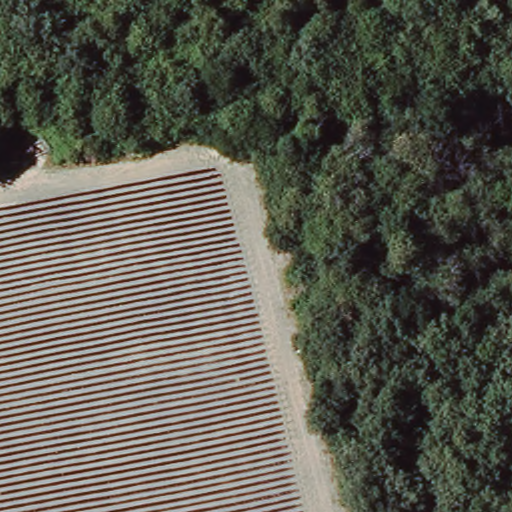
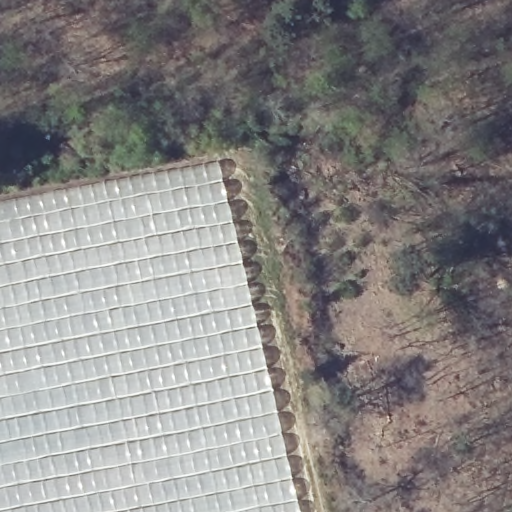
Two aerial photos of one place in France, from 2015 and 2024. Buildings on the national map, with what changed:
new [(65,188),(158,173),(217,161),(241,257),(300,512),(0,512),(0,203),(65,188)]
demolished [(34,191),(100,186),(207,164),(235,177),(291,421),(313,512),(0,512),(0,198),(34,191)]

